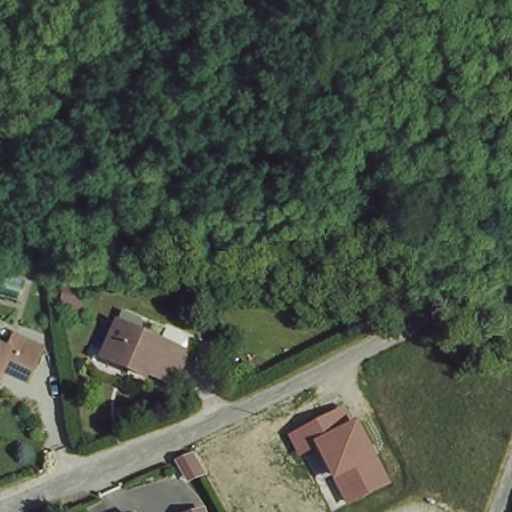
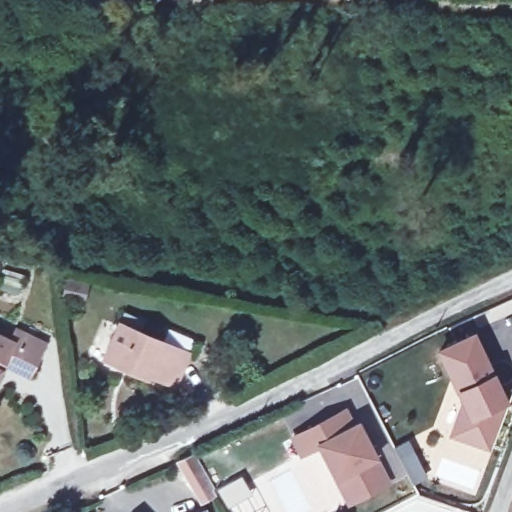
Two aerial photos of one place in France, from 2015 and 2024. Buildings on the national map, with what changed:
unchanged [(140,322),(135,334),(182,355),(168,387),(104,360),(123,313),(140,322)]
unchanged [(2,338),(9,327),(37,343),(18,376),(0,365),(0,337),(2,338)]
new [(457,400),(433,350),(474,332),(490,373),(494,372),(507,406),(500,411),(489,453),(447,437),(457,400)]
unchanged [(345,407),(355,425),(360,422),(392,487),(347,507),(317,450),(298,459),(288,437),(345,407)]
unchanged [(217,475),(197,486),(184,465),(205,453),(217,475)]

